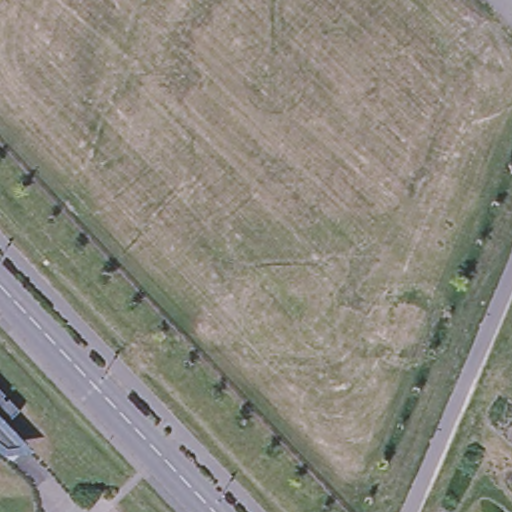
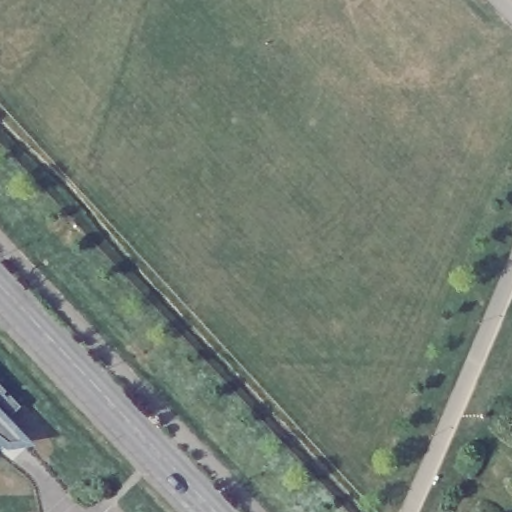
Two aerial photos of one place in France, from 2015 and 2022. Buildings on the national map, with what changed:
unchanged [(0,390),(0,386),(2,389),(0,390)]
unchanged [(5,392),(16,404),(0,419),(0,391),(2,394),(5,392)]

